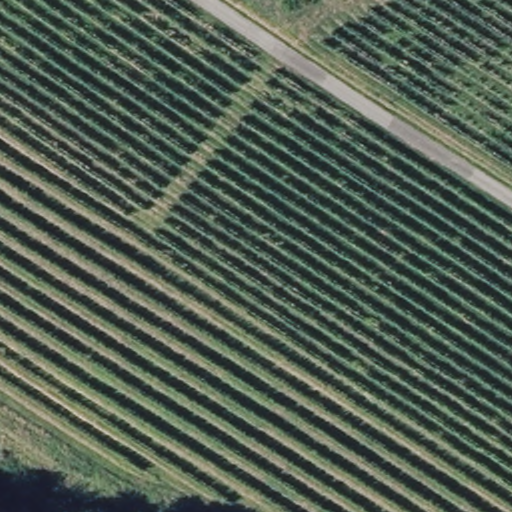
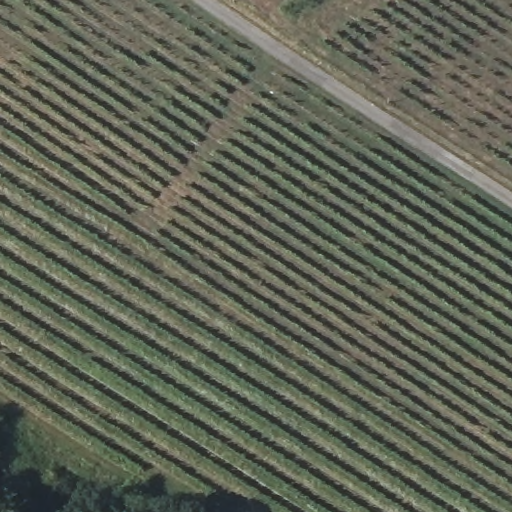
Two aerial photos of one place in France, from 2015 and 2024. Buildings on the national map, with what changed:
[]

